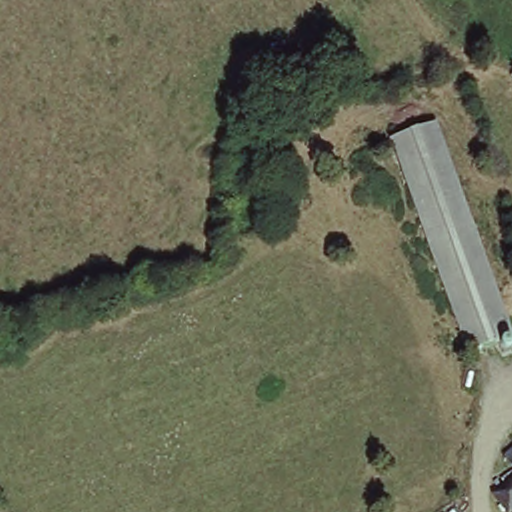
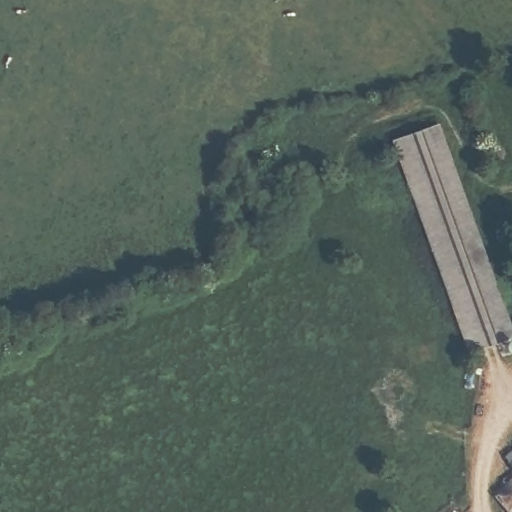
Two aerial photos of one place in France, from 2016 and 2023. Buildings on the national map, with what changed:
unchanged [(512,332),(475,347),(388,137),(432,120),(512,312),(512,332)]
unchanged [(512,471),(512,508),(496,483),(512,471)]

